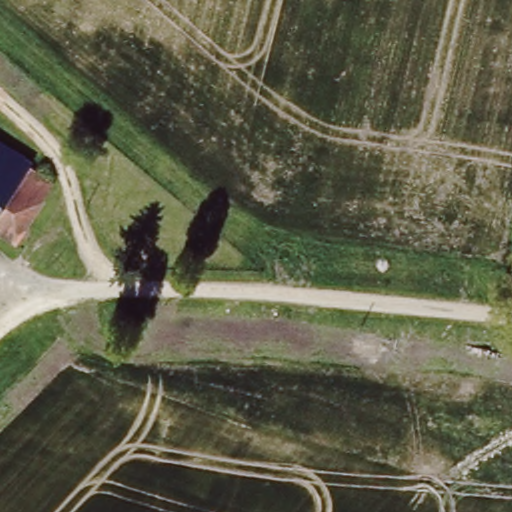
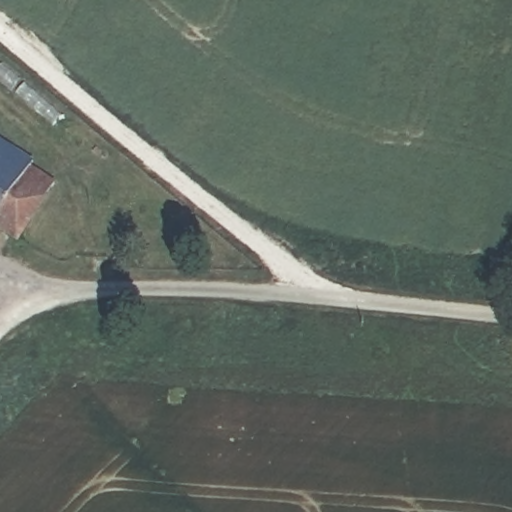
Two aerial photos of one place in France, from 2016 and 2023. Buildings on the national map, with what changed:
unchanged [(33,168),(30,172),(53,189),(17,246),(0,235),(0,147),(33,168)]

